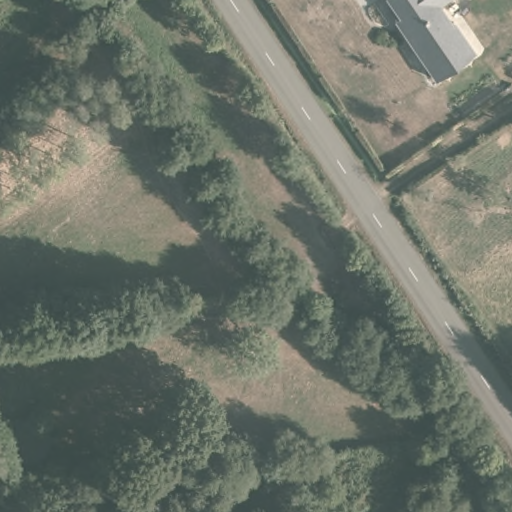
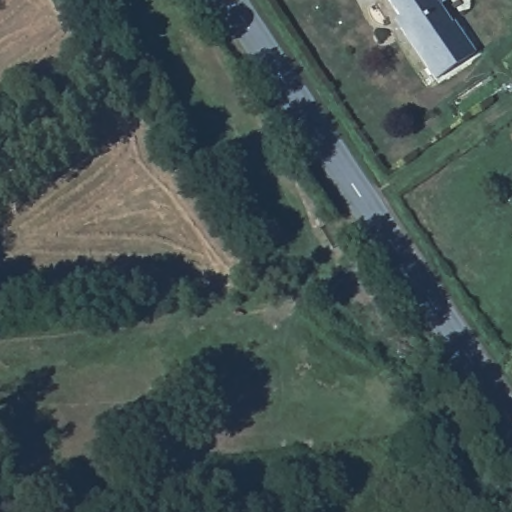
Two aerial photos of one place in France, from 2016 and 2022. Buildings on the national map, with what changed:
unchanged [(381,0),(449,0),(430,12),(445,35),(449,33),(467,60),(430,84),(396,35),(401,32),(381,0)]

